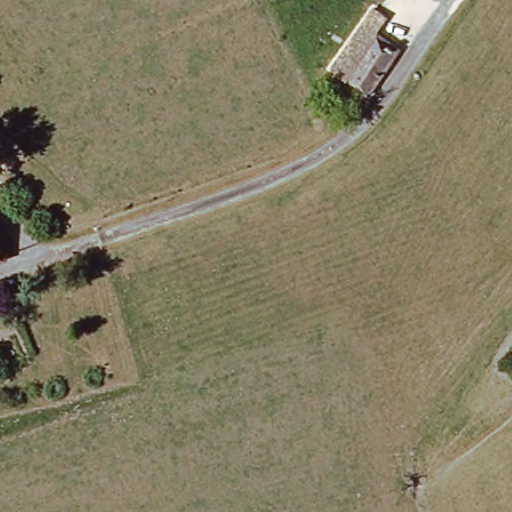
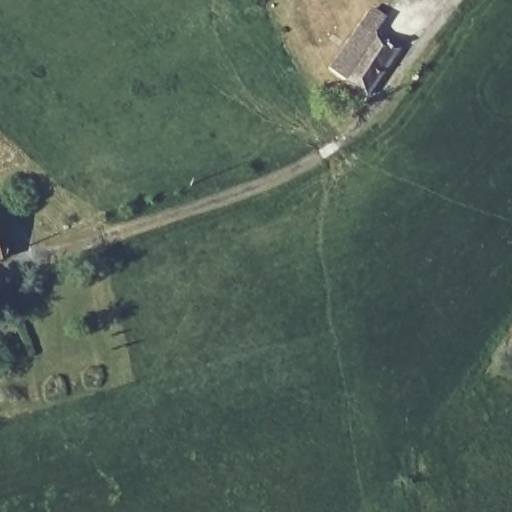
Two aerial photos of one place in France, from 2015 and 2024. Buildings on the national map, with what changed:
unchanged [(375,78),(361,97),(324,71),(355,27),(366,13),(378,21),(368,36),(392,54),(375,78)]

